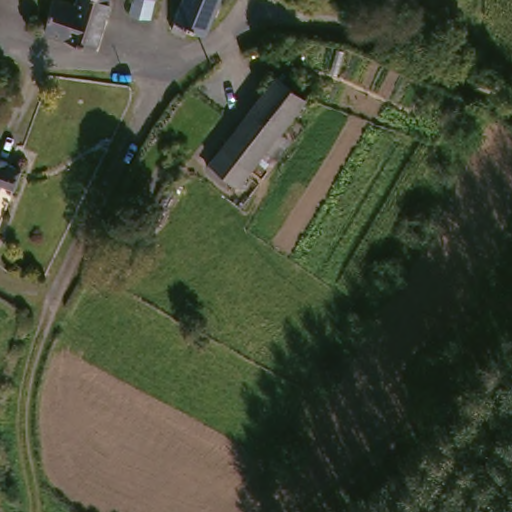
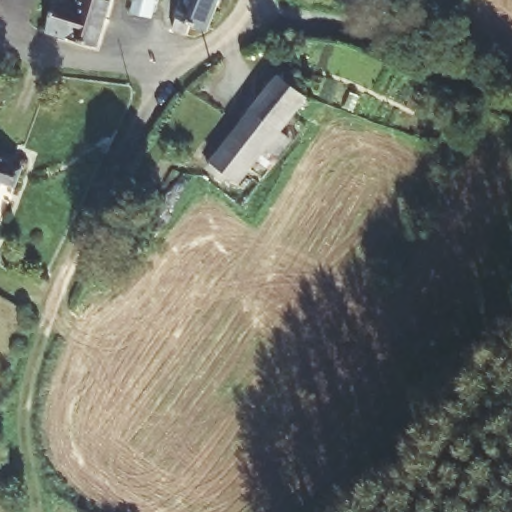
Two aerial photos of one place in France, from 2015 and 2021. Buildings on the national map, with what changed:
unchanged [(74,0),(86,3),(87,0),(117,0),(107,43),(57,30),(65,0),(74,0)]
unchanged [(157,0),(156,9),(153,24),(135,18),(137,8),(138,0),(157,0)]
unchanged [(180,33),(191,0),(227,0),(213,30),(197,25),(192,39),(180,33)]
unchanged [(281,79),(307,99),(284,129),(258,110),(281,79)]
unchanged [(258,110),(284,129),(248,177),(222,156),(258,110)]
unchanged [(25,169),(15,189),(0,184),(0,157),(25,169)]

